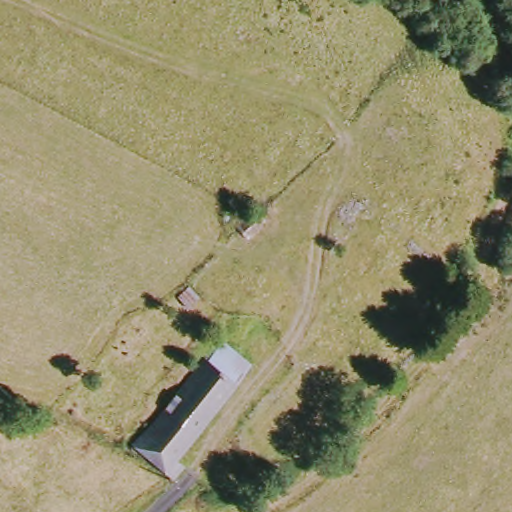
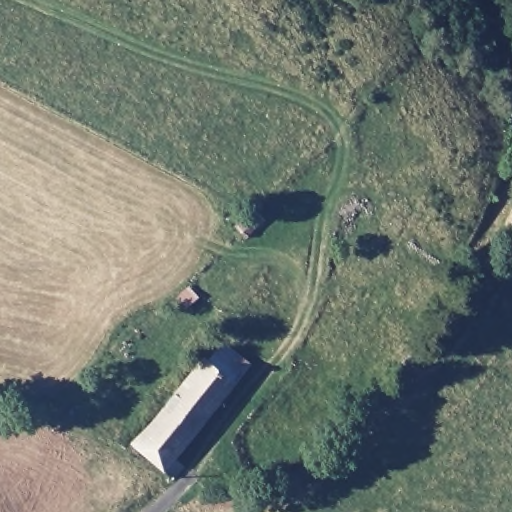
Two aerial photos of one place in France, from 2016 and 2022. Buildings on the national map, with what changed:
unchanged [(256,359),(200,457),(218,470),(205,492),(189,481),(139,458),(213,335),(256,359)]

